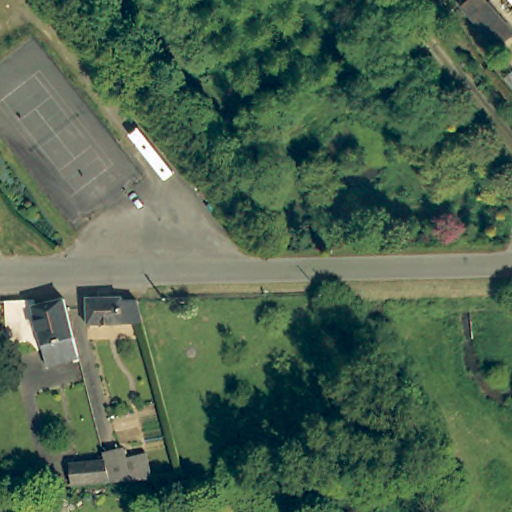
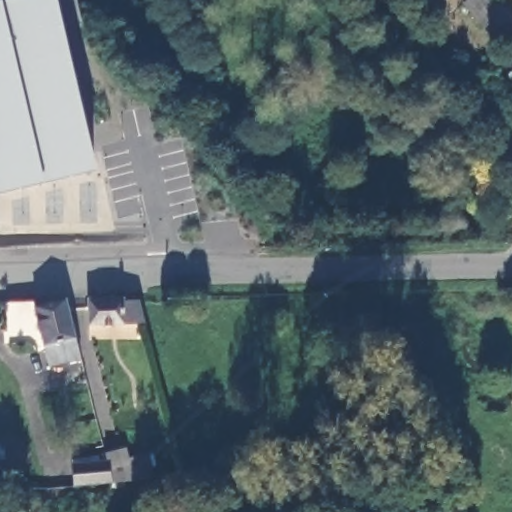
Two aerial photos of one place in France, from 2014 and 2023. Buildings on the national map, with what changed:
new [(56,0),(94,170),(0,191),(0,1),(5,0),(56,0)]
unchanged [(469,0),(492,0),(512,20),(512,34),(504,43),(464,4),(469,0)]
unchanged [(126,301),(142,300),(148,324),(93,326),(91,299),(126,298),(126,301)]
unchanged [(46,350),(42,351),(34,344),(13,347),(9,306),(9,304),(37,304),(39,311),(69,304),(77,342),(82,362),(49,370),(46,350)]
unchanged [(108,462),(105,452),(124,448),(126,457),(145,453),(152,477),(114,485),(74,486),(74,463),(108,462)]

